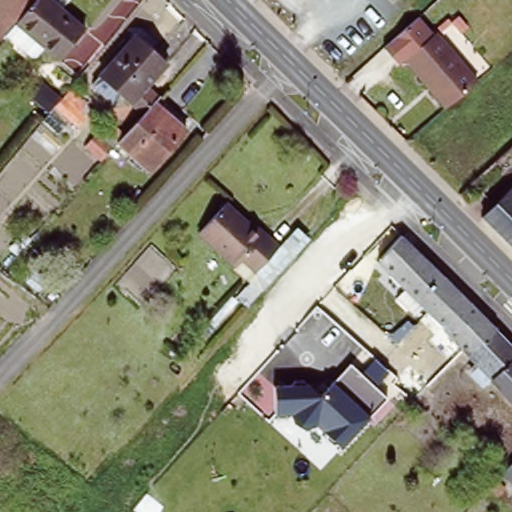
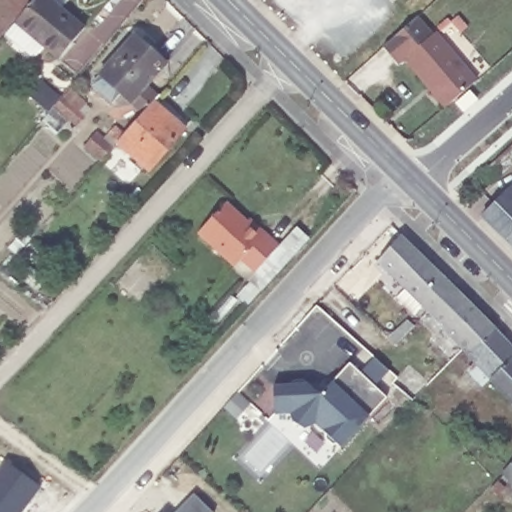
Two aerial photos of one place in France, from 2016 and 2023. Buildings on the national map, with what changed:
unchanged [(35,0),(0,40),(0,0),(35,0)]
unchanged [(60,65),(45,51),(37,60),(27,59),(7,39),(40,0),(42,0),(84,36),(60,65)]
unchanged [(394,0),(405,0),(399,5),(394,0)]
unchanged [(432,35),(475,85),(444,110),(402,61),(432,35)]
unchanged [(135,41),(166,70),(147,91),(158,103),(155,107),(144,119),(122,99),(112,109),(102,100),(110,90),(100,80),(135,41)]
unchanged [(84,118),(77,125),(55,106),(61,99),(84,118)]
unchanged [(149,176),(145,172),(141,177),(128,165),(132,161),(117,148),(110,140),(116,134),(124,141),(140,124),(144,119),(155,107),(185,136),(149,176)]
unchanged [(512,196),(512,261),(478,229),(512,196)]
unchanged [(250,305),(238,295),(250,281),(199,232),(232,202),(278,245),(297,226),(310,239),(250,305)]
unchanged [(512,405),(490,385),(485,390),(467,372),(475,362),(375,263),(402,236),(512,345),(512,405)]
unchanged [(42,280),(35,289),(17,275),(25,265),(42,280)]
unchanged [(386,397),(340,445),(314,421),(308,427),(293,413),(275,413),(275,380),(330,385),(350,362),(386,397)]
new [(24,512),(0,512),(0,467),(5,460),(42,486),(24,512)]
unchanged [(512,466),(512,490),(500,478),(512,466)]
new [(192,494),(212,512),(174,512),(192,494)]

